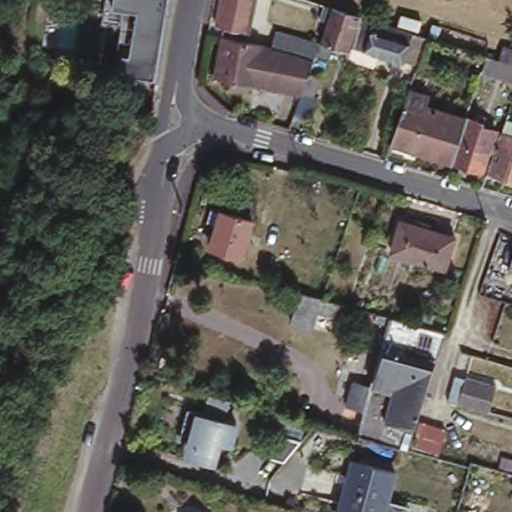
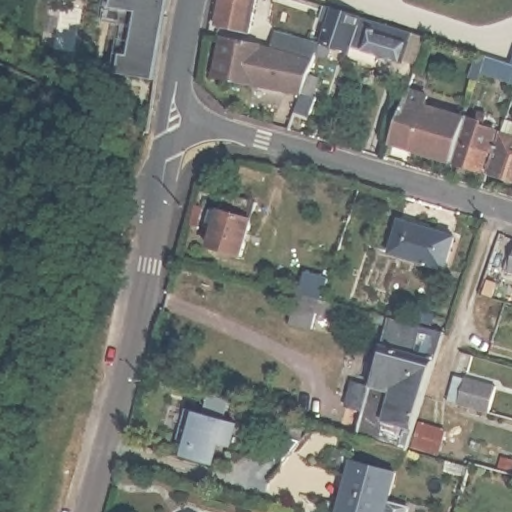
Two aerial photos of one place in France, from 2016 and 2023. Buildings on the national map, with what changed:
unchanged [(140,8),(131,51),(123,50),(120,69),(112,68),(121,20),(101,16),(104,0),(113,0),(113,2),(140,8)]
unchanged [(120,69),(123,50),(131,51),(140,8),(113,2),(113,0),(170,0),(156,75),(120,69)]
unchanged [(219,27),(224,0),(260,0),(252,34),(219,27)]
unchanged [(320,94),(313,116),(297,110),(303,92),(219,76),(227,36),(275,46),(280,29),(321,42),(332,11),(326,10),(327,3),(334,5),(362,16),(351,48),(342,45),(342,46),(333,44),(329,56),(317,53),(315,59),(311,72),(321,76),(316,91),(320,94)]
unchanged [(405,64),(351,48),(362,16),(391,24),(416,32),(405,64)]
unchanged [(465,58),(425,46),(428,36),(468,48),(465,58)]
unchanged [(489,54),(512,61),(512,78),(484,70),(489,54)]
unchanged [(504,81),(511,84),(509,90),(502,86),(504,81)]
unchanged [(393,144),(411,91),(432,99),(428,108),(469,121),(455,164),(393,144)]
unchanged [(488,126),(486,130),(498,134),(492,155),(489,154),(483,172),(455,164),(469,121),(470,119),(488,126)]
unchanged [(506,125),(512,126),(512,130),(509,137),(512,138),(512,181),(507,180),(489,174),(491,167),(506,125)]
unchanged [(219,229),(208,226),(212,210),(223,214),(229,195),(260,205),(244,257),(213,248),(219,229)]
unchanged [(405,219),(458,234),(448,267),(396,251),(405,219)]
unchanged [(512,257),(512,278),(507,277),(512,257)]
unchanged [(337,314),(319,310),(315,326),(294,320),(302,289),(325,296),(341,300),(337,314)]
unchanged [(410,448),(362,434),(395,315),(446,329),(410,448)]
unchanged [(494,386),(485,418),(444,406),(454,374),(494,386)]
unchanged [(368,413),(342,407),(350,380),(376,384),(368,413)]
unchanged [(229,399),(224,421),(240,425),(233,448),(222,446),(217,467),(179,460),(184,443),(175,441),(184,410),(202,414),(207,394),(229,399)]
unchanged [(418,421),(444,429),(436,456),(410,448),(418,421)]
unchanged [(282,465),(265,461),(272,433),(303,440),(282,465)]
unchanged [(358,463),(401,476),(391,512),(345,512),(358,463)]

